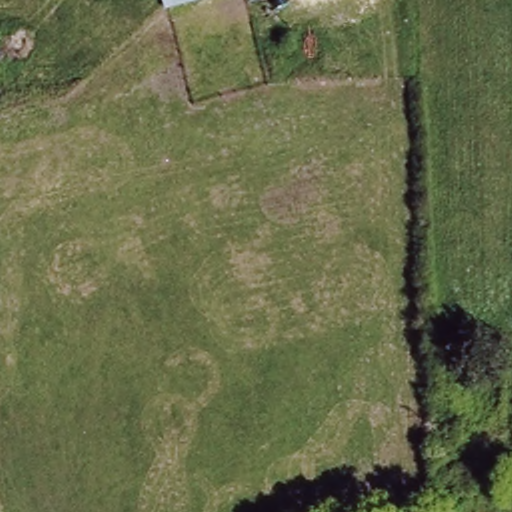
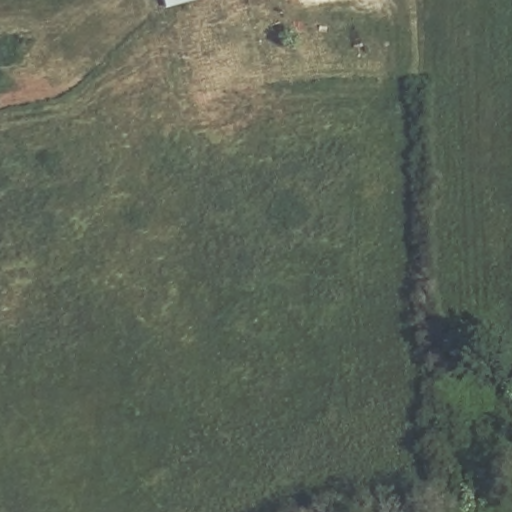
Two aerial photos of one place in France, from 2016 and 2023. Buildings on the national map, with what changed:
unchanged [(162,0),(202,0),(164,9),(162,0)]

